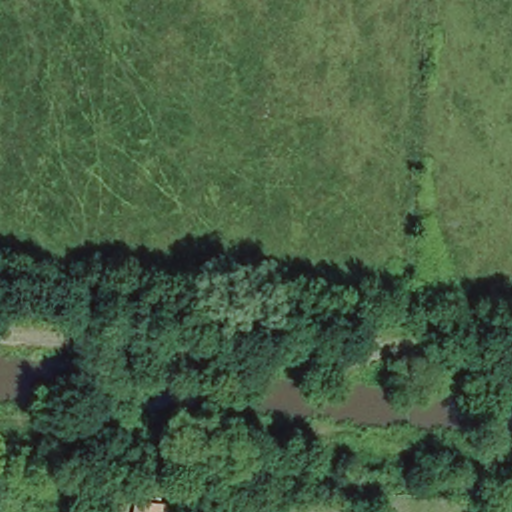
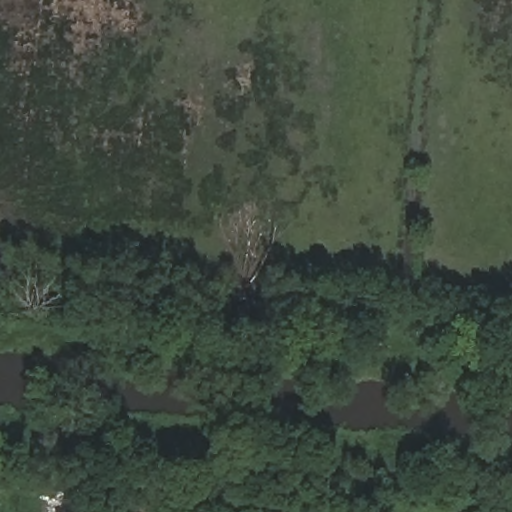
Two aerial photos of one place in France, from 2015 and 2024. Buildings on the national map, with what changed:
unchanged [(162,512),(133,512),(136,498),(164,504),(162,512)]

